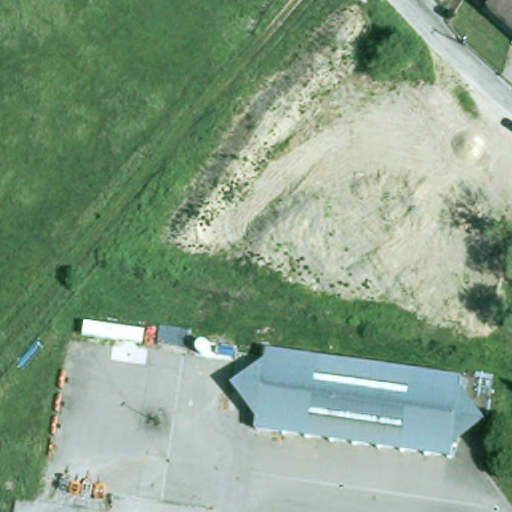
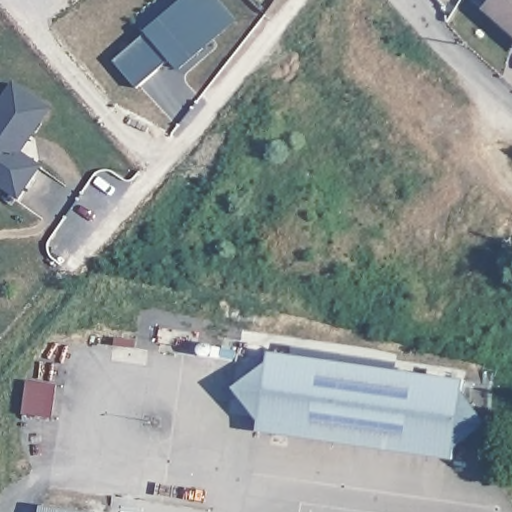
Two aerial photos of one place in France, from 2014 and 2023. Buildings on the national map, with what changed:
new [(168,58),(136,87),(112,60),(180,0),(220,0),(237,20),(179,71),(168,58)]
unchanged [(486,7),(493,0),(512,0),(512,31),(486,7)]
new [(23,151),(43,163),(19,199),(0,187),(0,99),(13,79),(54,106),(23,151)]
unchanged [(450,453),(448,463),(255,432),(257,416),(233,388),(265,364),(267,353),(462,384),(460,393),(483,430),(450,453)]
new [(31,383),(62,387),(58,421),(26,417),(31,383)]
new [(40,506),(74,512),(40,512),(40,506)]

